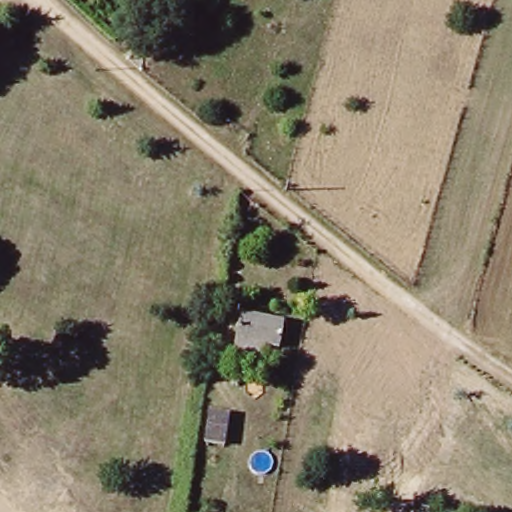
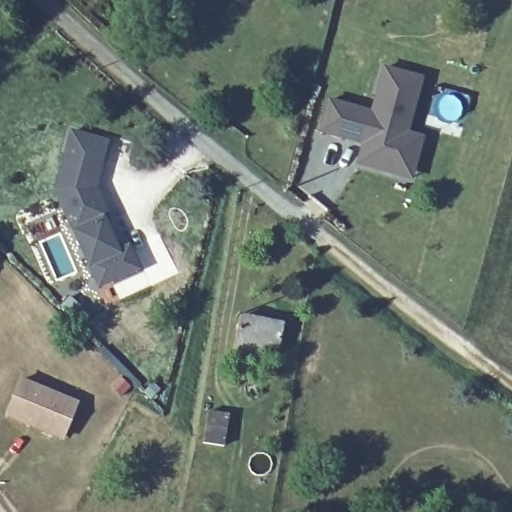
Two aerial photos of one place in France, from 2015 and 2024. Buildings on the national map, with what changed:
new [(325,96),(368,109),(381,63),(424,76),(409,131),(425,136),(412,183),(353,166),(358,146),(315,133),(325,96)]
demolished [(473,87),(462,118),(399,94),(411,63),(473,87)]
new [(97,187),(110,218),(106,220),(119,249),(129,244),(142,270),(97,290),(53,189),(69,129),(109,140),(97,187)]
unchanged [(274,346),(231,338),(236,314),(278,322),(274,346)]
new [(63,441),(4,418),(20,378),(78,401),(63,441)]
unchanged [(208,445),(214,415),(233,419),(226,448),(208,445)]

